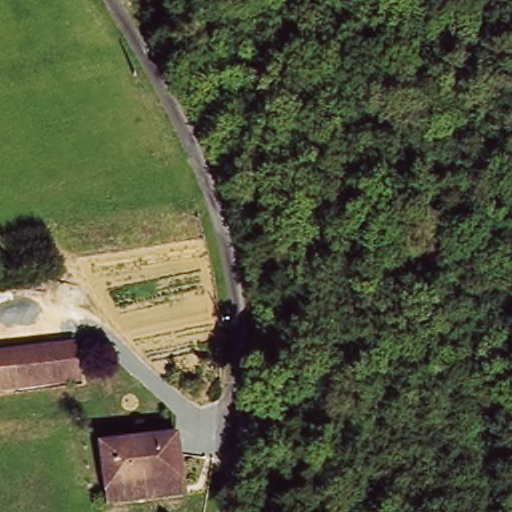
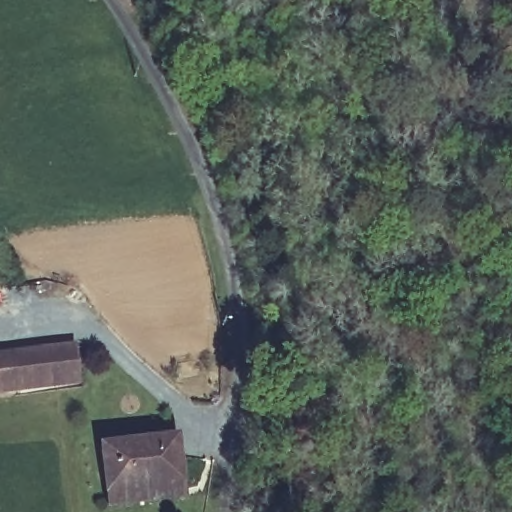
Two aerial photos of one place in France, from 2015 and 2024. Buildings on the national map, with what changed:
unchanged [(82,374),(0,392),(0,353),(73,336),(82,374)]
unchanged [(182,436),(190,484),(151,489),(140,443),(182,436)]
unchanged [(115,496),(107,448),(140,443),(151,489),(115,496)]

